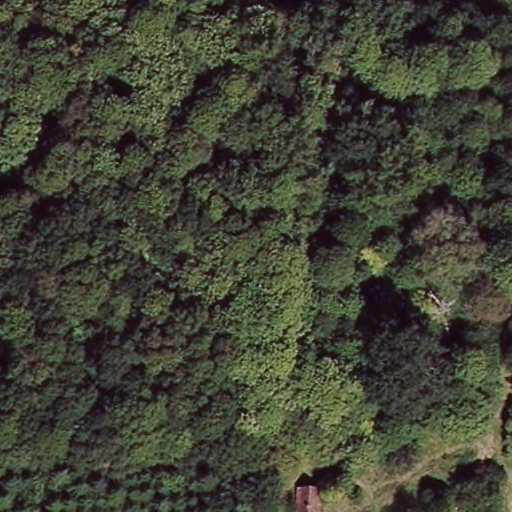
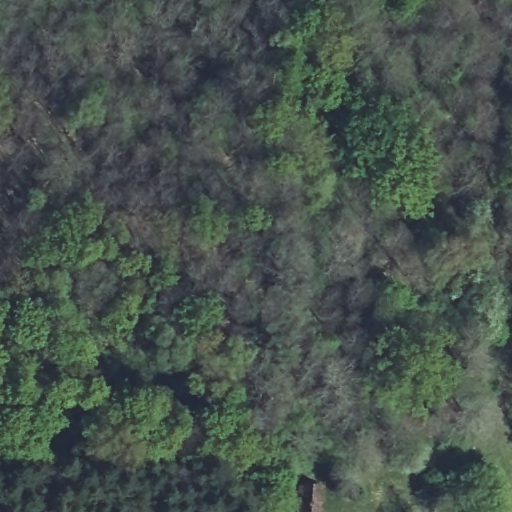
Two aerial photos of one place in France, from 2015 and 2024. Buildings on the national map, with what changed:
unchanged [(321,476),(320,512),(299,512),(299,475),(321,476)]

